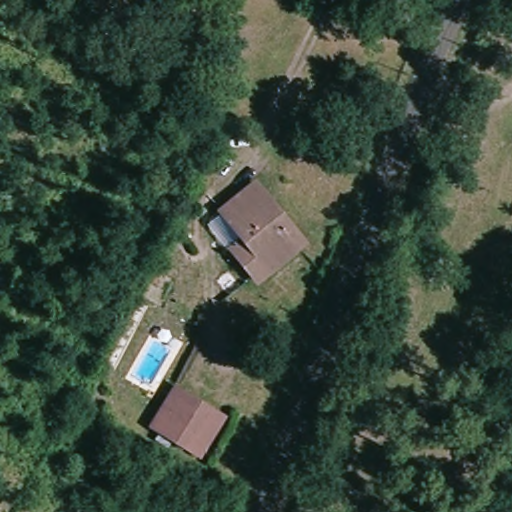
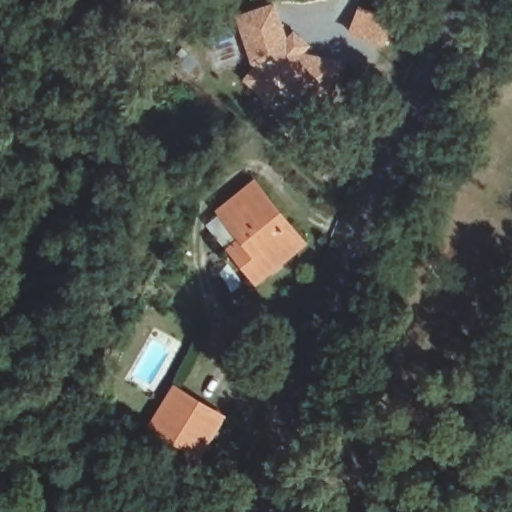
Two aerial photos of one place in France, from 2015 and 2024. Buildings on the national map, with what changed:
new [(286,39),(302,54),(332,60),(327,96),(286,90),(254,63),(239,16),(273,5),(286,39)]
new [(350,31),(360,8),(393,21),(384,45),(350,31)]
unchanged [(259,291),(223,257),(236,243),(210,217),(247,177),(310,234),(259,291)]
unchanged [(207,461),(190,453),(146,428),(167,384),(211,407),(229,418),(207,461)]

